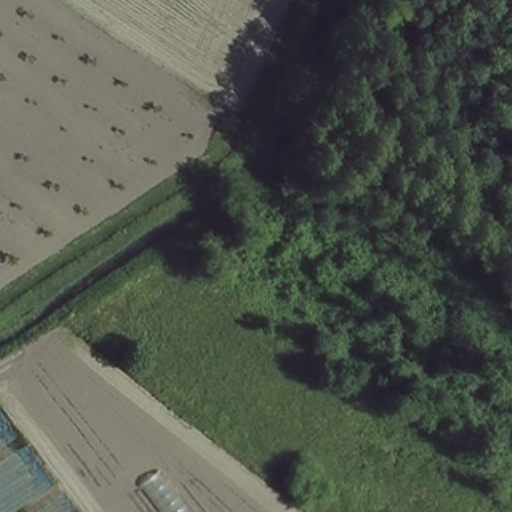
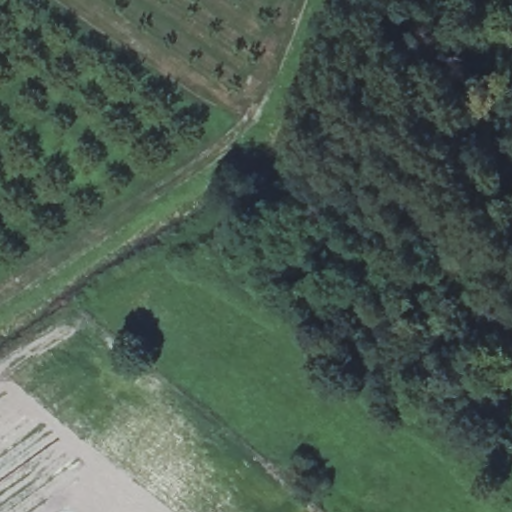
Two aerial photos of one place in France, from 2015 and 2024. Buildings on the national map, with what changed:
[]

